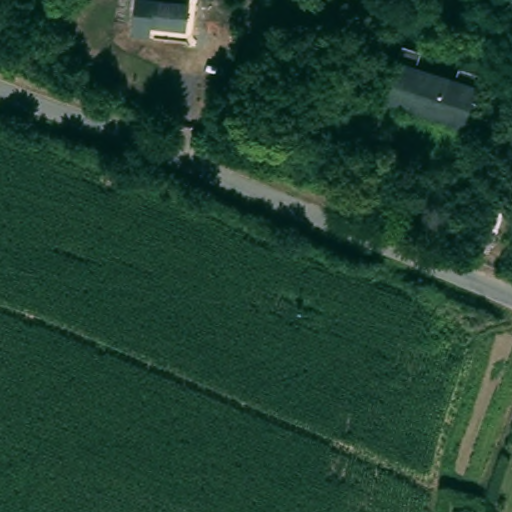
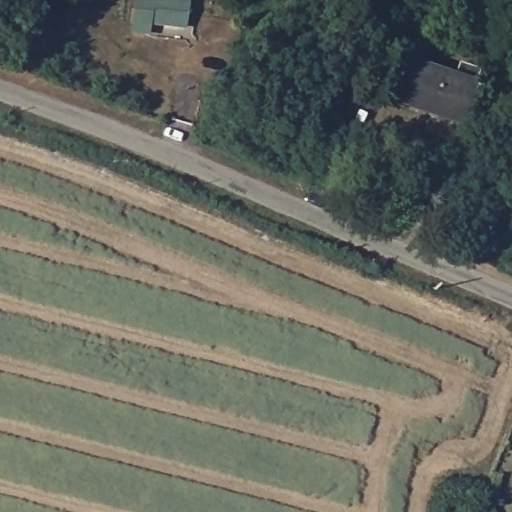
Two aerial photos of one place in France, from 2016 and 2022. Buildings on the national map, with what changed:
unchanged [(139,21),(142,0),(168,0),(193,4),(189,30),(154,24),(152,34),(137,31),(139,21)]
unchanged [(452,120),(386,96),(397,63),(464,86),(452,120)]

